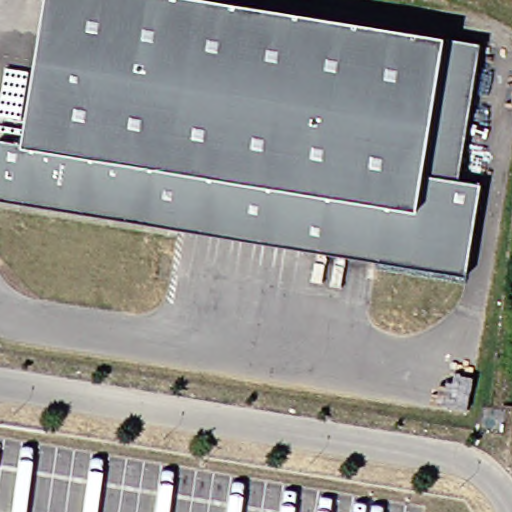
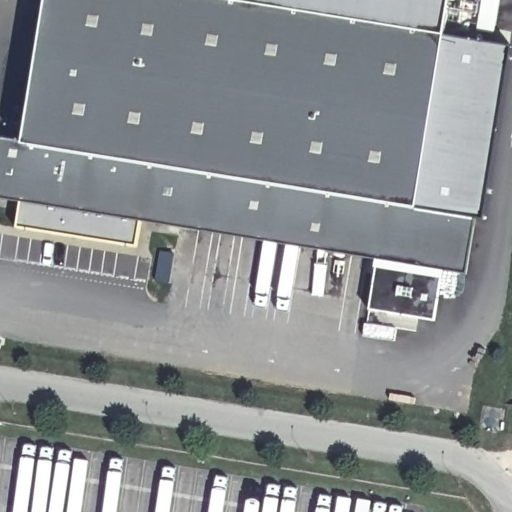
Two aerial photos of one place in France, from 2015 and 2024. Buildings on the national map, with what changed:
unchanged [(31,140),(44,65),(54,0),(452,0),(423,167),(483,176),(468,270),(305,244),(306,238),(198,221),(197,227),(92,210),(0,196),(0,144),(1,135),(31,140)]
new [(423,167),(446,38),(505,47),(483,176),(423,167)]
unchanged [(0,109),(8,60),(44,65),(31,140),(1,135),(0,134),(0,109)]
new [(378,255),(443,266),(434,321),(372,310),(378,255)]

